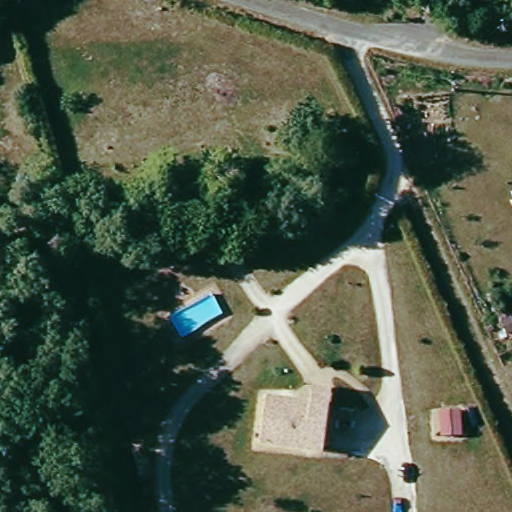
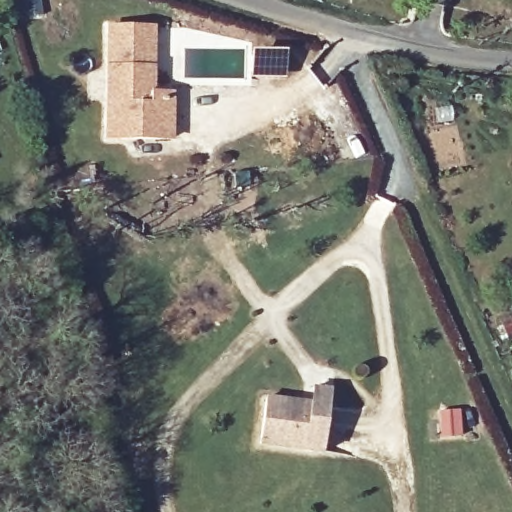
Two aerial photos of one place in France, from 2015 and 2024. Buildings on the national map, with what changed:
new [(156,26),(155,91),(174,92),(174,141),(105,140),(106,25),(156,26)]
unchanged [(262,449),(269,404),(314,410),(316,395),(335,397),(332,412),(325,457),(262,449)]

